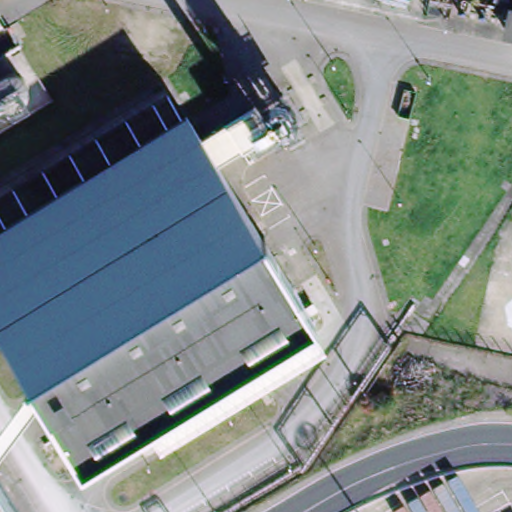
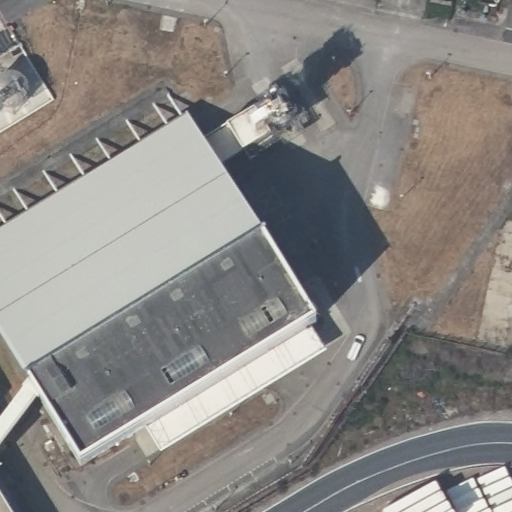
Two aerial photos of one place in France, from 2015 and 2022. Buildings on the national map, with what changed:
unchanged [(512,10),(512,31),(505,30),(510,10),(512,10)]
unchanged [(207,136),(231,121),(259,104),(267,100),(287,132),(262,149),(260,144),(248,151),(246,148),(224,162),(207,136)]
unchanged [(200,121),(207,136),(224,162),(267,233),(322,320),(86,463),(45,395),(36,380),(32,375),(0,322),(0,226),(192,109),(200,121)]
unchanged [(36,380),(45,395),(0,454),(0,427),(15,407),(36,380)]
unchanged [(0,482),(18,512),(0,512),(0,482)]

